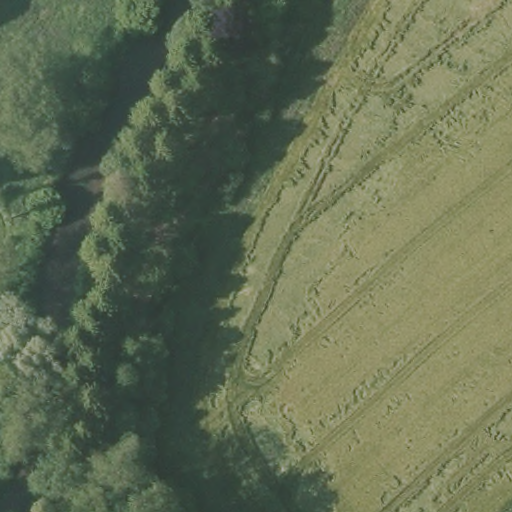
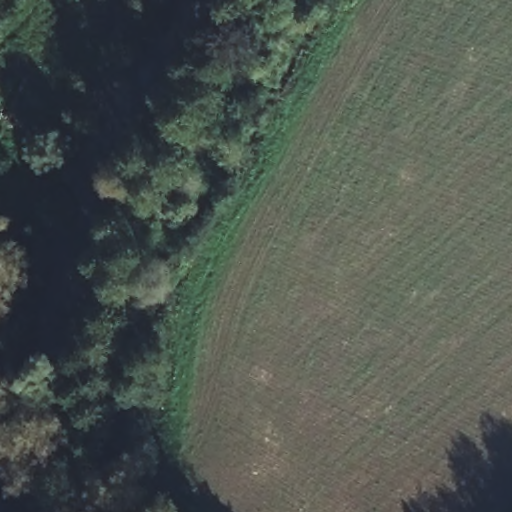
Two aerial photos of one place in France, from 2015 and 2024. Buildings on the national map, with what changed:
[]

